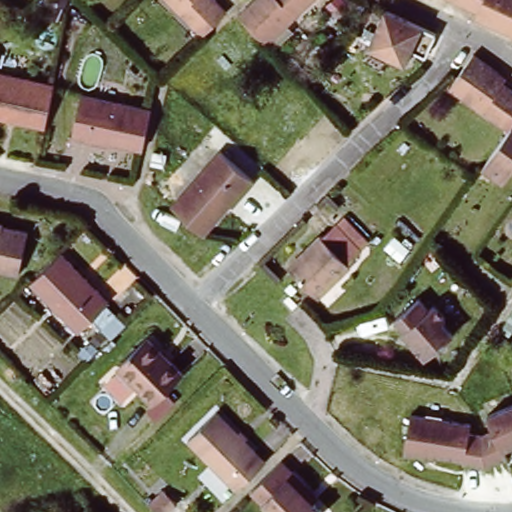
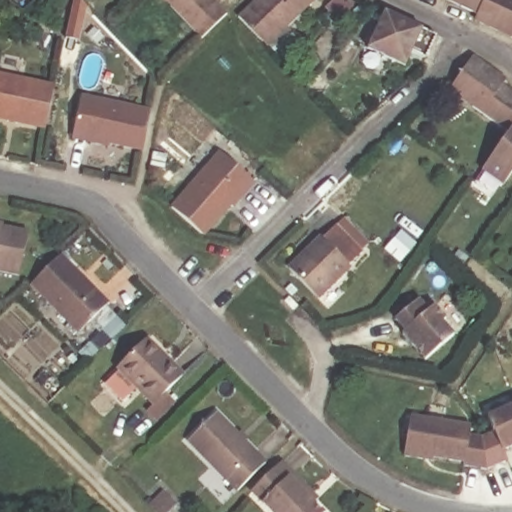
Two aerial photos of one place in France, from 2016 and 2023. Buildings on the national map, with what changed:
unchanged [(203,40),(171,8),(175,4),(172,0),(212,0),(229,16),(203,40)]
unchanged [(314,0),(290,24),(285,19),(265,39),(240,14),(246,9),(255,0),(314,0)]
unchanged [(498,18),(459,0),(512,0),(512,32),(495,24),(498,18)]
unchanged [(430,55),(415,49),(410,62),(372,44),(389,9),(440,34),(430,55)]
unchanged [(512,127),(478,104),(482,98),(460,81),(475,59),(512,85),(512,127)]
unchanged [(52,121),(0,110),(0,69),(60,81),(52,121)]
unchanged [(145,150),(110,144),(110,145),(72,139),(80,98),(151,113),(145,150)]
unchanged [(490,169),(512,135),(512,182),(512,183),(490,169)]
unchanged [(175,208),(178,205),(229,156),(227,158),(262,181),(242,210),(237,207),(209,234),(175,208)]
unchanged [(322,236),(344,214),(369,238),(361,247),(364,249),(349,264),(320,297),(289,265),(322,236)]
unchanged [(34,230),(25,272),(0,267),(0,223),(34,230)]
unchanged [(115,301),(85,332),(35,284),(65,254),(115,301)]
unchanged [(397,322),(423,298),(433,308),(437,303),(450,314),(445,320),(455,333),(429,356),(397,322)]
unchanged [(185,377),(157,404),(121,369),(150,342),(185,377)]
unchanged [(473,423),(472,436),(497,436),(490,414),(512,406),(512,449),(509,450),(512,458),(512,461),(493,467),(410,452),(417,414),(473,423)]
unchanged [(264,462),(237,488),(189,439),(215,414),(216,413),(264,462)]
unchanged [(314,504),(322,512),(274,512),(254,492),(282,463),(308,488),(304,493),(314,504)]
unchanged [(328,478),(339,489),(334,494),(324,483),(328,478)]
unchanged [(172,505),(185,494),(192,502),(182,512),(179,512),(172,505)]

